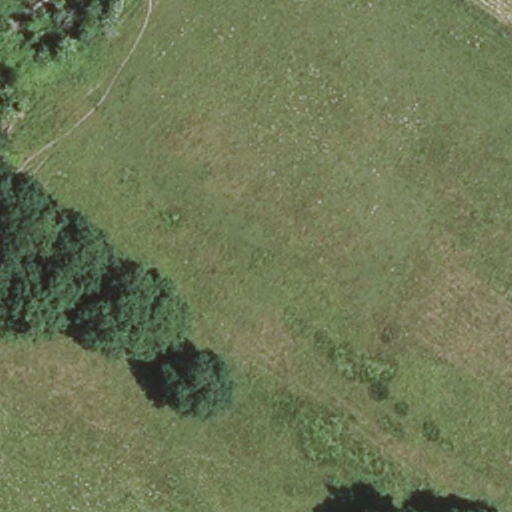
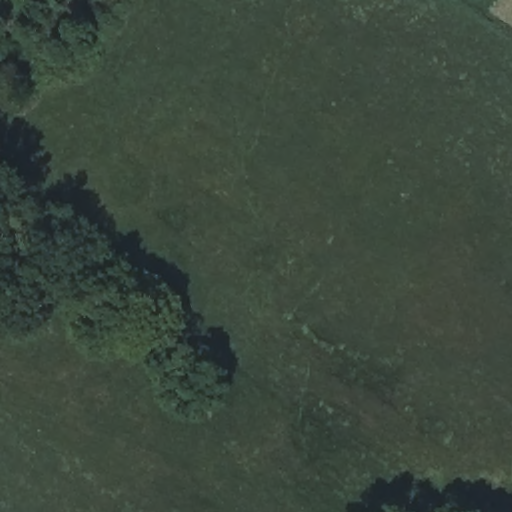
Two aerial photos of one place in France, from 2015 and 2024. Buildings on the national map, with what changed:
[]

